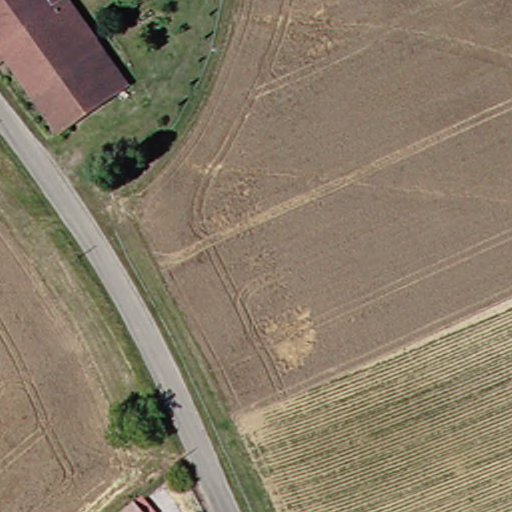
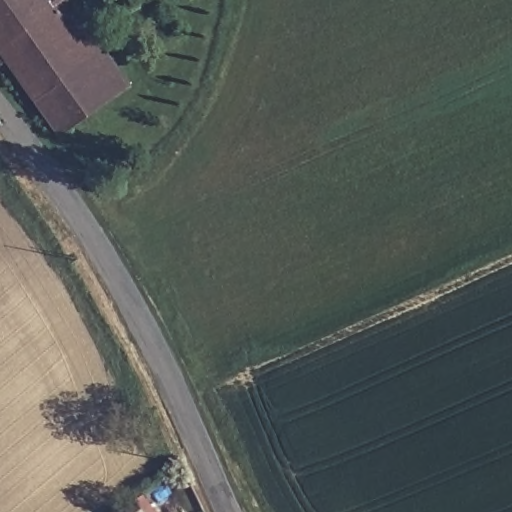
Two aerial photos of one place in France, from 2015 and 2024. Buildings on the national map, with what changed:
unchanged [(64,10),(10,49),(0,35),(0,0),(57,0),(64,10)]
unchanged [(78,0),(139,87),(126,96),(64,10),(78,0)]
unchanged [(126,96),(69,136),(17,61),(4,71),(0,65),(0,35),(10,49),(64,10),(126,96)]
unchanged [(150,512),(127,512),(141,501),(150,512)]

